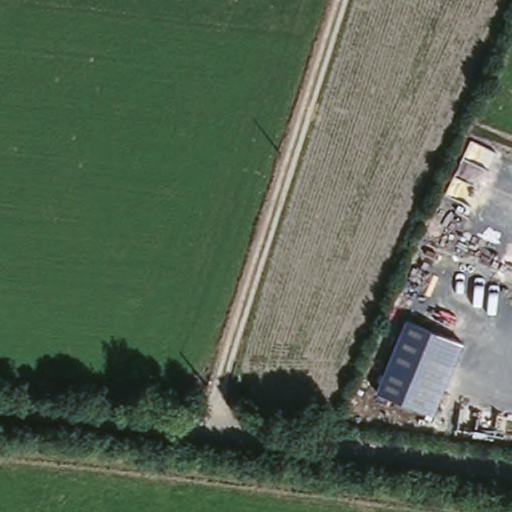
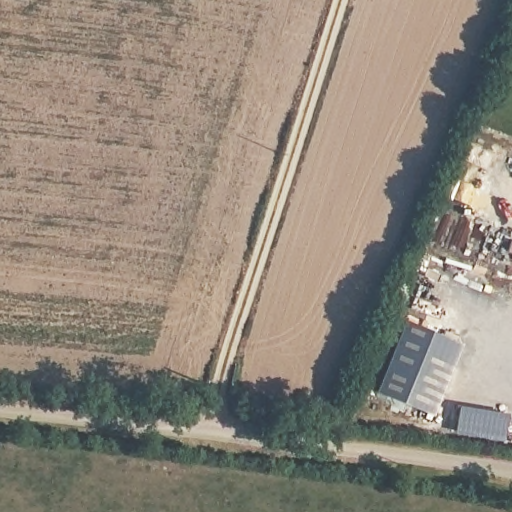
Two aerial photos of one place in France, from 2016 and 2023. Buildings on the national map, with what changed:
unchanged [(406,319),(460,343),(435,414),(376,389),(406,319)]
new [(508,414),(503,441),(455,432),(460,406),(508,414)]

